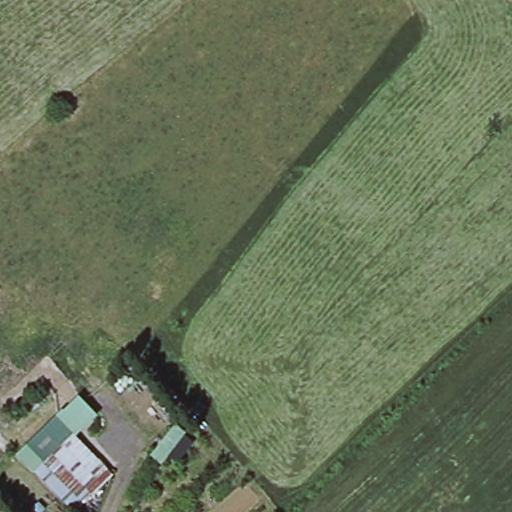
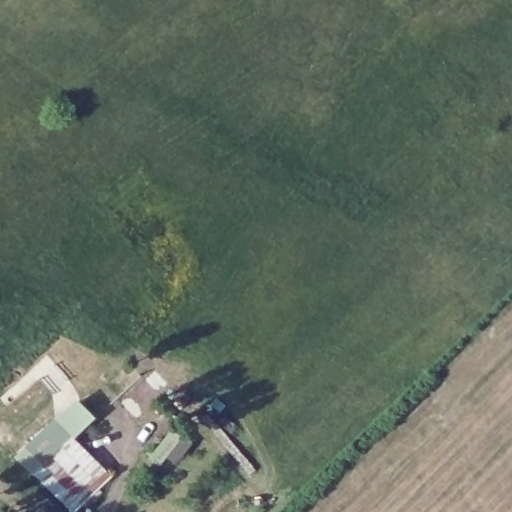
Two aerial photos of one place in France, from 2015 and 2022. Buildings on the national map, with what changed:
unchanged [(75,512),(69,512),(32,470),(50,452),(40,441),(60,423),(115,476),(75,512)]

